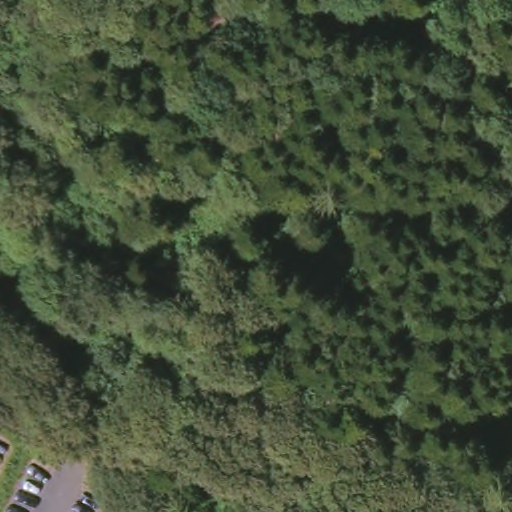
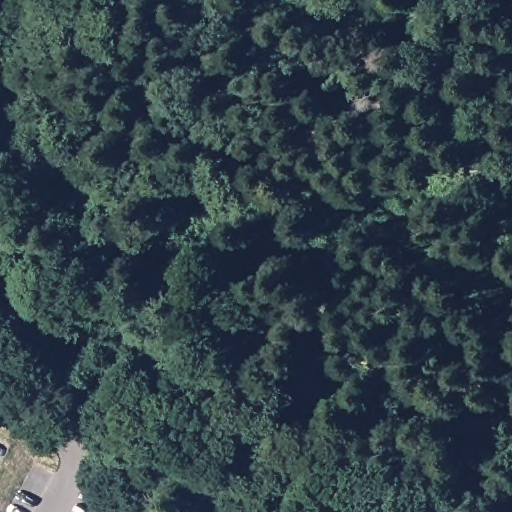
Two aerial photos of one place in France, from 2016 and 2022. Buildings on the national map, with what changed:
unchanged [(0,409),(0,386),(10,390),(0,409)]
unchanged [(168,488),(200,492),(197,512),(166,512),(168,488)]

